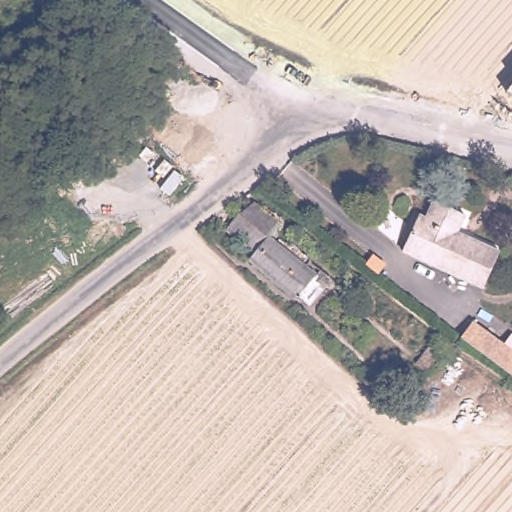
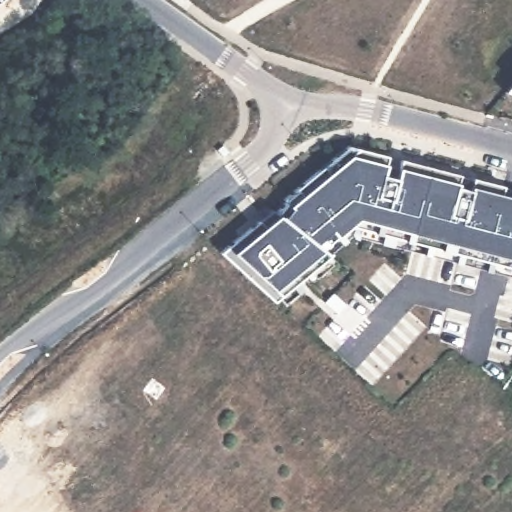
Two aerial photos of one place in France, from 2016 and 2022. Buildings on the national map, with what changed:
unchanged [(512,85),(512,92),(508,90),(512,85)]
new [(355,236),(275,303),(219,252),(259,220),(264,224),(288,206),(283,199),(348,146),(512,188),(512,276),(355,236)]
demolished [(403,244),(418,209),(426,213),(434,195),(464,209),(456,228),(462,230),(463,229),(499,247),(484,281),(437,260),(403,244)]
demolished [(227,225),(241,209),(255,198),(280,217),(269,231),(316,269),(320,265),(332,275),(309,301),(297,291),(295,292),(250,254),(254,248),(227,225)]
demolished [(463,336),(475,321),(512,350),(512,374),(463,336)]
demolished [(417,362),(429,347),(439,356),(427,370),(417,362)]
demolished [(364,382),(374,371),(381,377),(376,382),(381,386),(376,392),(364,382)]

